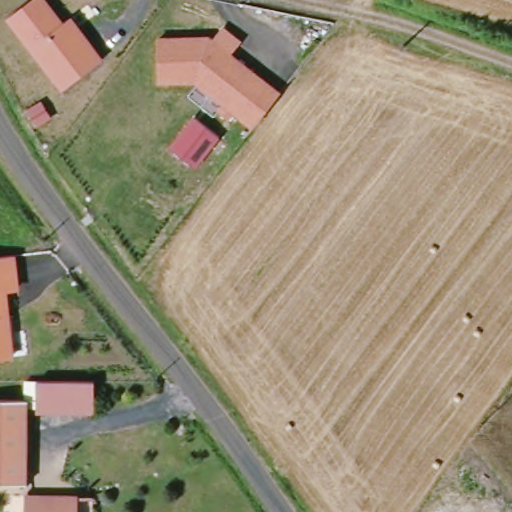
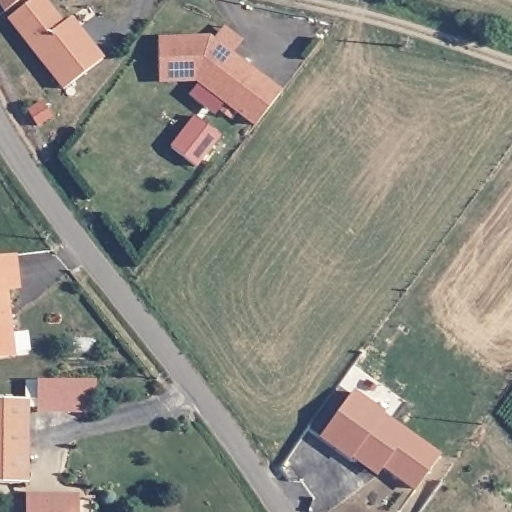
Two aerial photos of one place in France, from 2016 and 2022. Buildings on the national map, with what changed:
unchanged [(40,0),(55,19),(63,13),(75,27),(95,54),(57,84),(1,14),(18,0),(40,0)]
unchanged [(252,121),(196,75),(159,75),(158,34),(210,33),(279,89),(252,121)]
unchanged [(196,168),(169,148),(194,117),(220,137),(196,168)]
unchanged [(0,353),(0,253),(17,252),(19,284),(7,285),(12,352),(0,353)]
unchanged [(67,381),(94,381),(93,410),(37,409),(37,380),(67,381)]
new [(414,492),(382,469),(375,477),(320,437),(353,392),(439,455),(414,492)]
unchanged [(0,484),(0,402),(22,403),(21,484),(0,484)]
unchanged [(72,499),(72,512),(22,512),(22,499),(72,499)]

